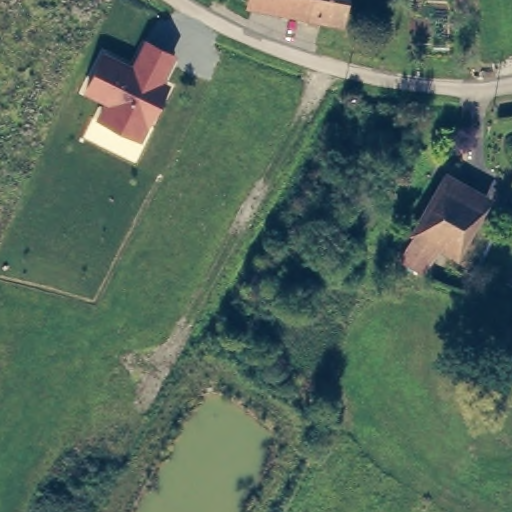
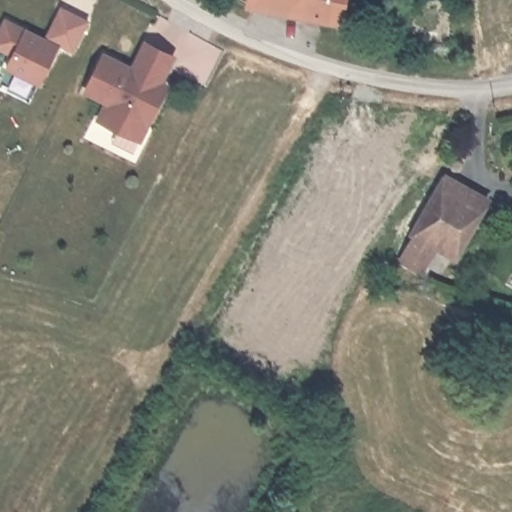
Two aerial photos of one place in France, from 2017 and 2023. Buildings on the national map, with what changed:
unchanged [(348,0),(343,26),(319,23),(318,29),(305,26),(306,20),(246,10),(247,0),(348,0)]
new [(5,69),(13,56),(0,50),(0,30),(6,19),(46,36),(61,6),(91,20),(75,53),(61,47),(41,86),(5,69)]
unchanged [(140,142),(95,120),(103,104),(82,92),(104,51),(133,65),(144,41),(176,57),(165,82),(170,85),(140,142)]
unchanged [(443,177),(484,201),(456,250),(443,243),(414,224),(443,177)]
unchanged [(443,243),(426,270),(398,251),(414,224),(443,243)]

